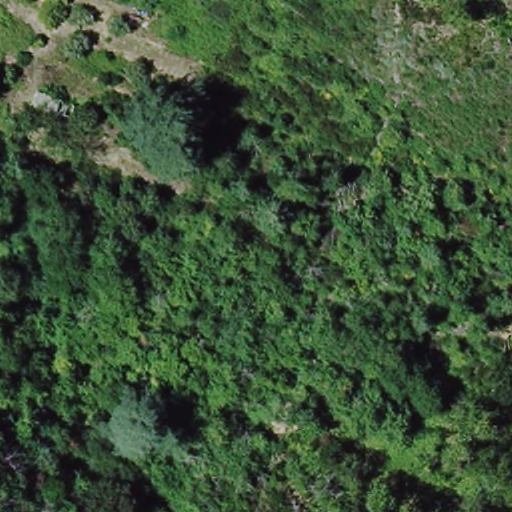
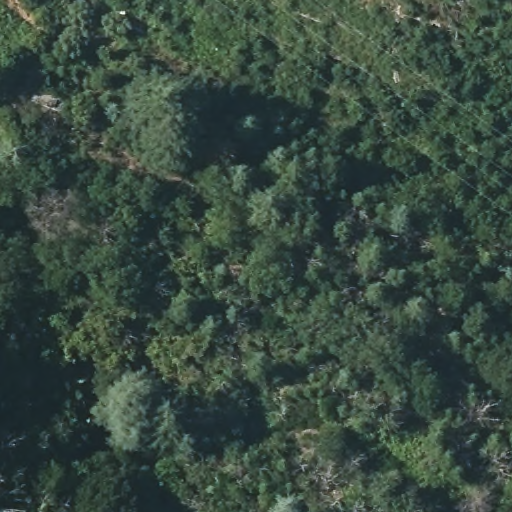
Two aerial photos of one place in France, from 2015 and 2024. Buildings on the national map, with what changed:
unchanged [(68,123),(21,108),(28,87),(75,101),(68,123)]
unchanged [(126,311),(135,294),(142,299),(158,306),(143,333),(127,326),(132,314),(126,311)]

